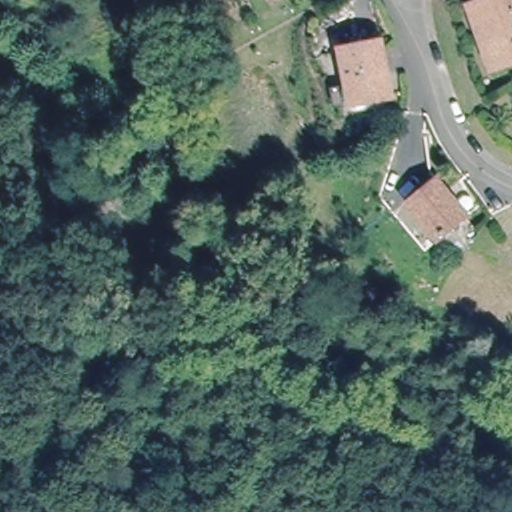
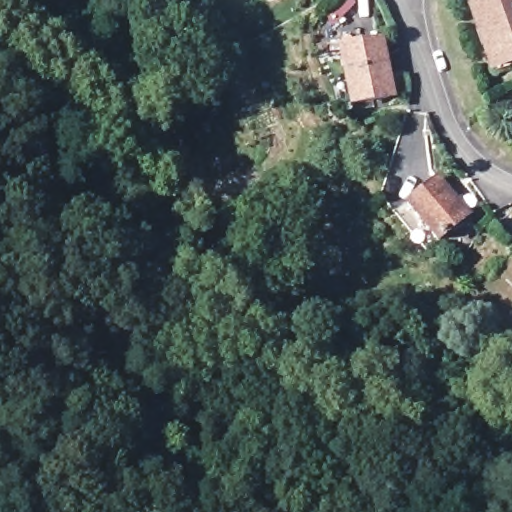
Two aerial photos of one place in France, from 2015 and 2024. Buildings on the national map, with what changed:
unchanged [(466,6),(484,0),(512,0),(512,2),(512,58),(486,67),(466,6)]
unchanged [(390,94),(350,98),(345,44),(384,40),(390,94)]
unchanged [(465,211),(436,235),(406,199),(435,175),(465,211)]

